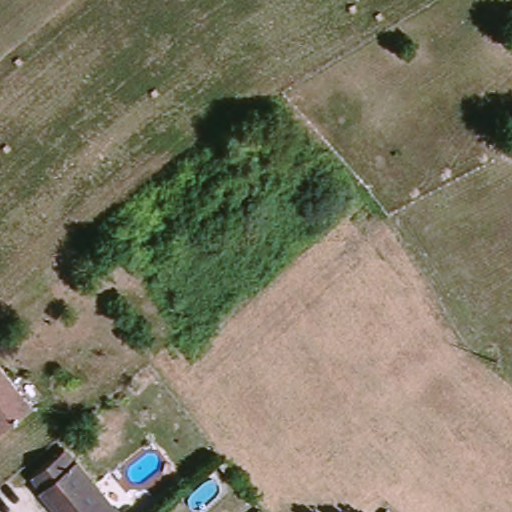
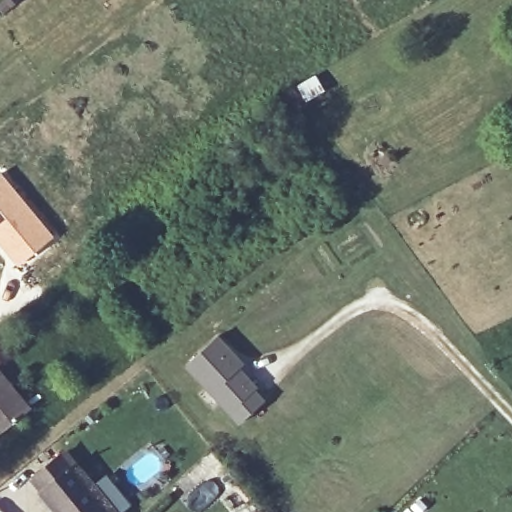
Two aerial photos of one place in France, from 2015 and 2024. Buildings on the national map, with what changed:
new [(2,172),(55,236),(18,267),(0,246),(0,174),(2,172)]
new [(237,355),(244,363),(240,366),(258,386),(255,388),(265,399),(241,421),(187,363),(218,334),(237,355)]
unchanged [(35,410),(0,437),(0,366),(35,410)]
unchanged [(68,459),(111,512),(58,512),(35,485),(68,459)]

